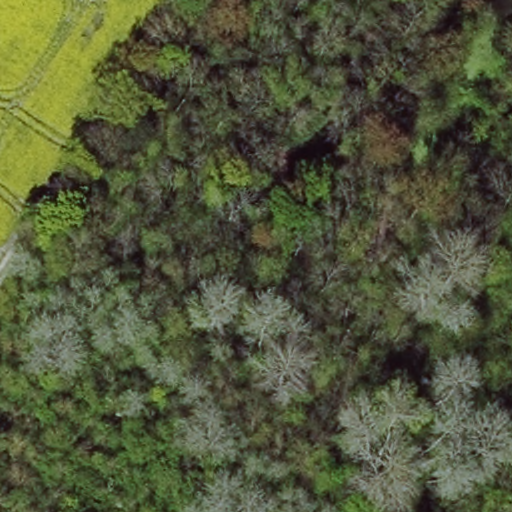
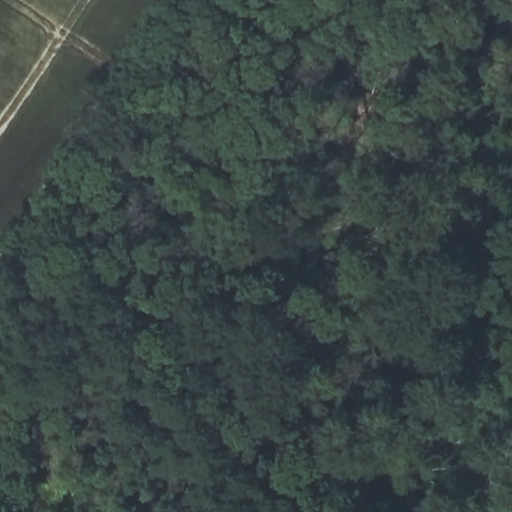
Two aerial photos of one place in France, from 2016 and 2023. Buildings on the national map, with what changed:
unchanged [(283,172),(262,201),(242,186),(263,157),(283,172)]

